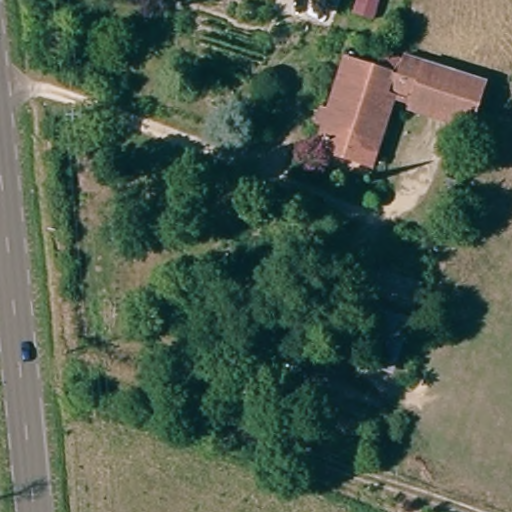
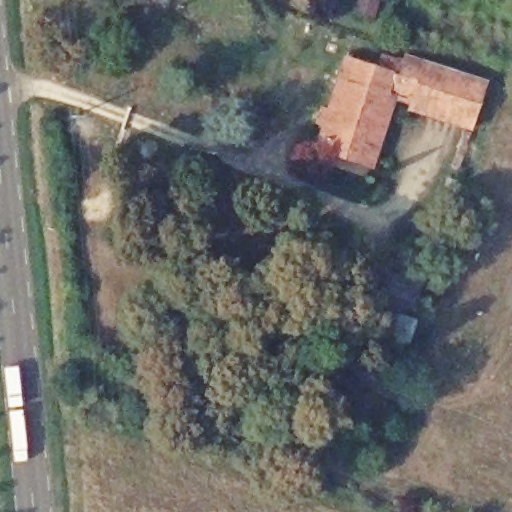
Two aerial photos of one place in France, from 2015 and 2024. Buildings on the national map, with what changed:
unchanged [(31,14),(31,4),(42,4),(42,15),(31,14)]
unchanged [(482,90),(456,176),(435,170),(444,134),(390,117),(406,65),(482,90)]
unchanged [(365,166),(318,151),(345,70),(392,85),(365,166)]
unchanged [(410,305),(399,303),(390,330),(404,336),(392,364),(373,357),(375,348),(358,340),(367,298),(373,300),(380,267),(415,282),(410,305)]

